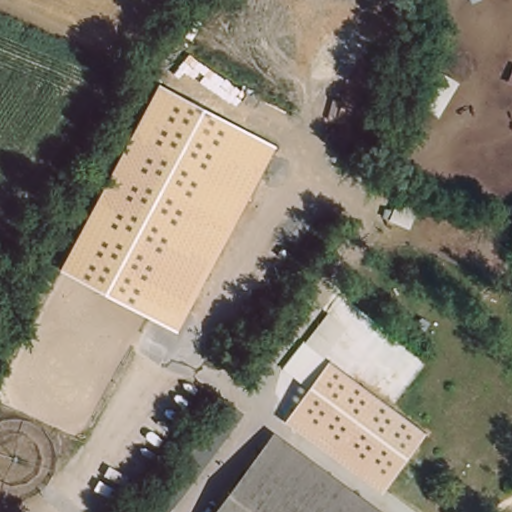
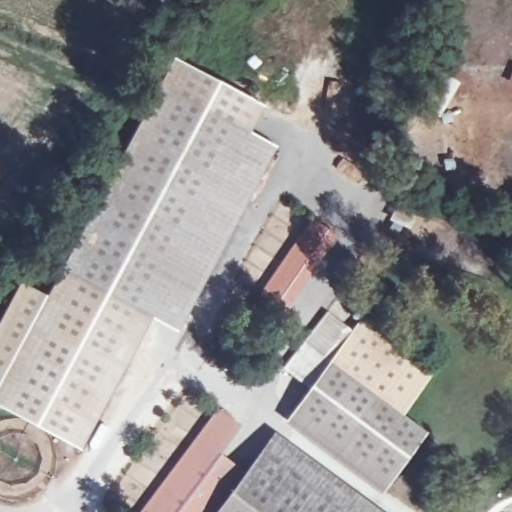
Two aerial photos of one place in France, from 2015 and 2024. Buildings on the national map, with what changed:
new [(175,57),(267,106),(252,132),(160,85),(175,57)]
unchanged [(512,65),(512,84),(505,81),(512,65)]
new [(440,77),(423,101),(438,76),(440,77)]
new [(440,77),(456,87),(440,114),(422,103),(423,102),(440,77)]
unchanged [(178,332),(61,271),(160,85),(277,145),(178,332)]
new [(313,216),(340,233),(285,314),(260,295),(313,216)]
new [(61,271),(152,318),(78,450),(0,408),(0,376),(61,271)]
unchanged [(383,493),(285,421),(310,387),(285,367),(327,313),(346,328),(326,357),(426,432),(383,493)]
new [(222,452),(244,470),(215,512),(136,512),(217,407),(242,424),(222,452)]
unchanged [(389,512),(344,512),(257,451),(271,431),(389,512)]
unchanged [(215,512),(257,451),(344,512),(215,512)]

